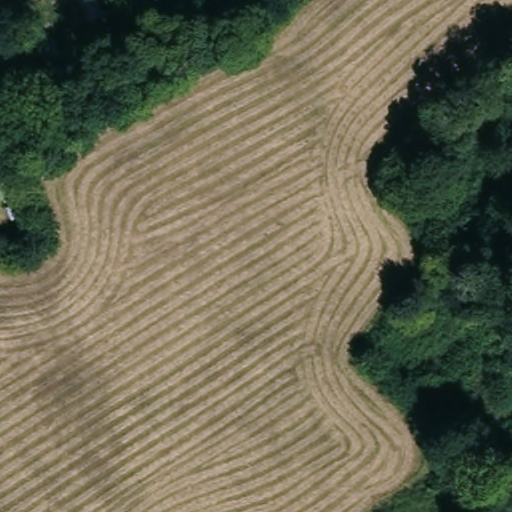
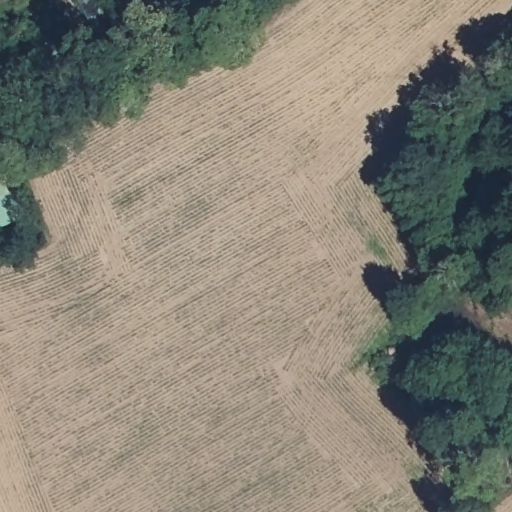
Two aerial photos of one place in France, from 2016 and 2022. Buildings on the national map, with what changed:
unchanged [(6,193),(0,196),(0,178),(6,193)]
unchanged [(3,208),(24,199),(29,211),(8,220),(3,208)]

